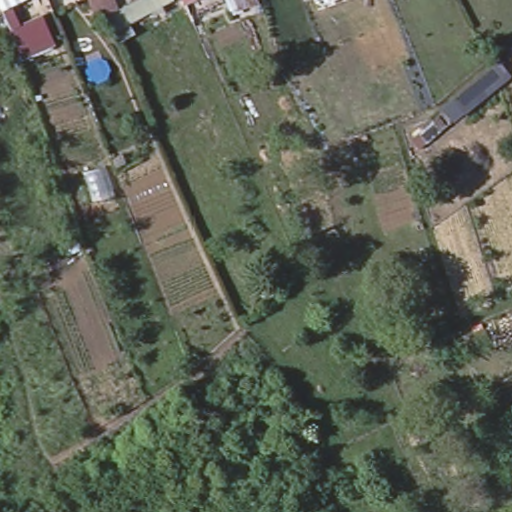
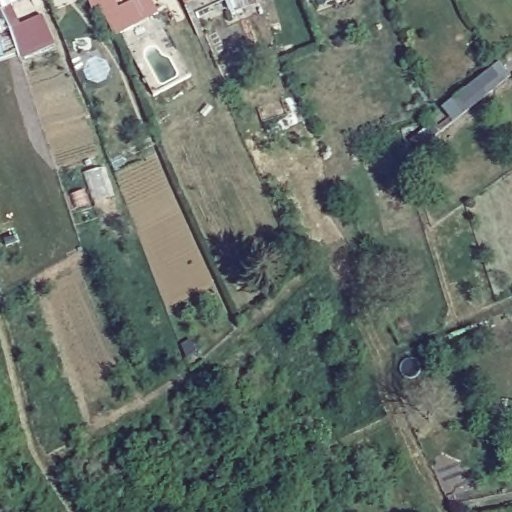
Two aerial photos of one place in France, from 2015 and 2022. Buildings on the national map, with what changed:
unchanged [(109,31),(100,11),(95,0),(168,0),(168,1),(157,6),(109,31)]
unchanged [(199,12),(194,0),(195,0),(227,0),(199,12)]
unchanged [(22,61),(12,31),(42,16),(54,47),(22,61)]
unchanged [(442,108),(499,63),(511,79),(453,121),(442,108)]

